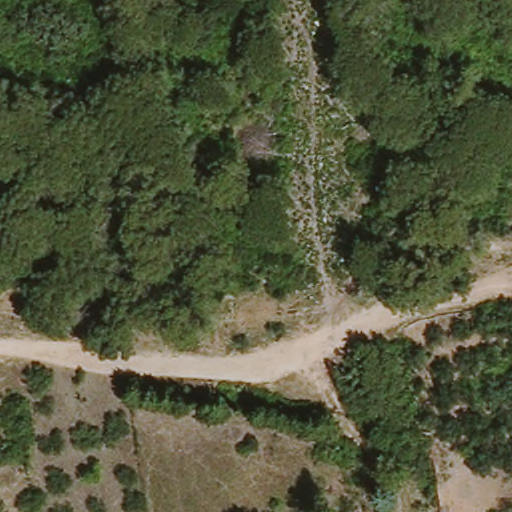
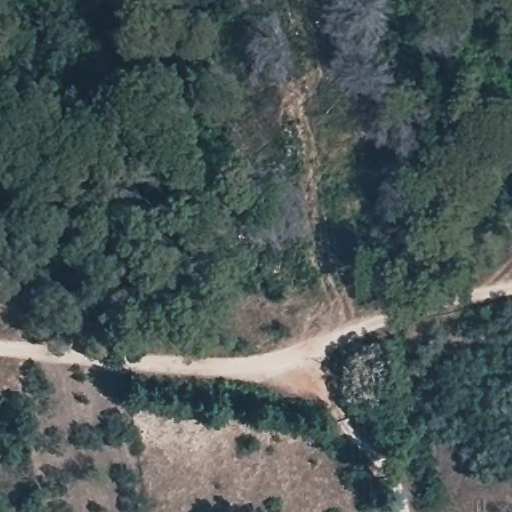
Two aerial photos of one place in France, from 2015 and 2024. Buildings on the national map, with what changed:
[]

